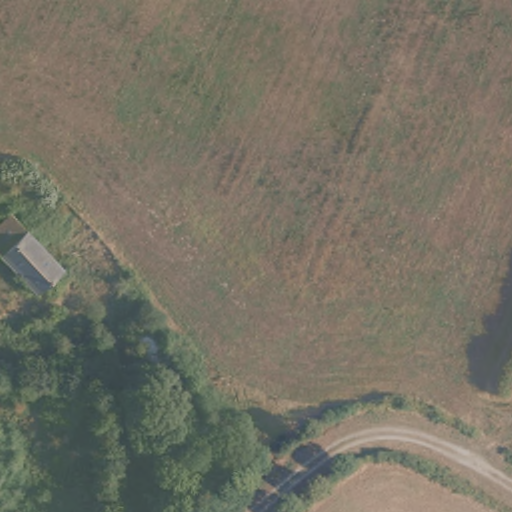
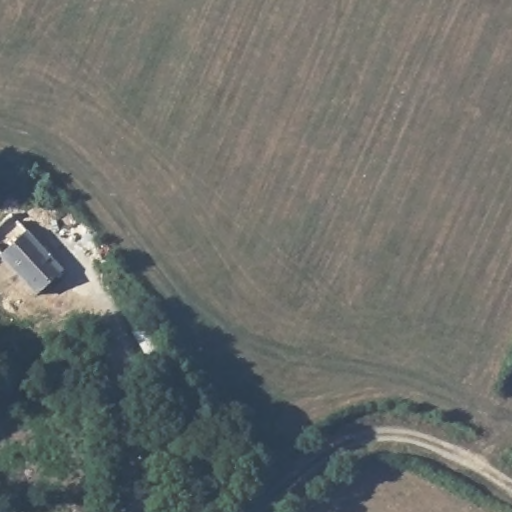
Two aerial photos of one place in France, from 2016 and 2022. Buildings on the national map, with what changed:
unchanged [(46,288),(0,235),(0,224),(15,211),(67,270),(46,288)]

